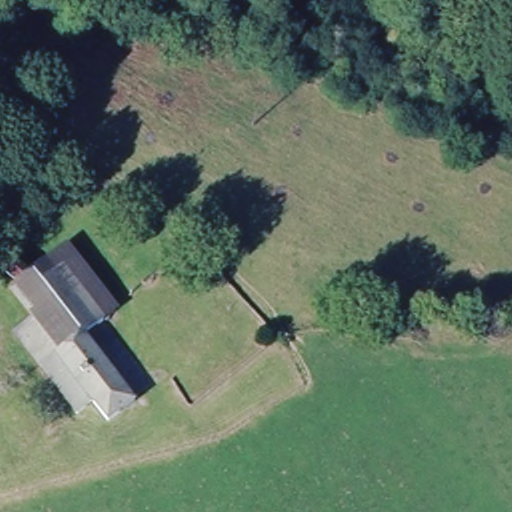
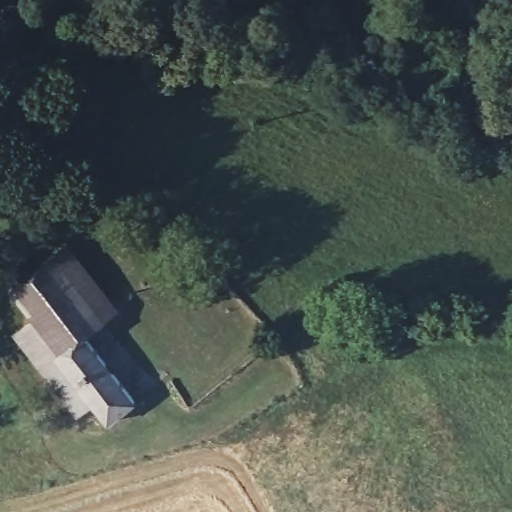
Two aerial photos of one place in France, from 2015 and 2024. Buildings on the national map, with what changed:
unchanged [(80,415),(60,390),(54,396),(47,389),(55,381),(19,338),(35,324),(10,294),(65,249),(113,308),(83,336),(140,408),(119,425),(105,414),(97,421),(90,427),(80,415)]

